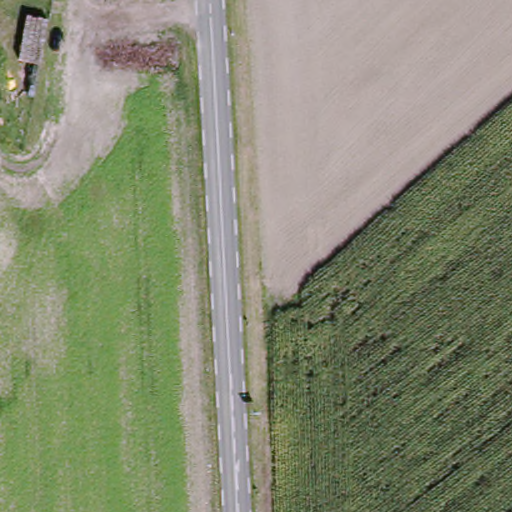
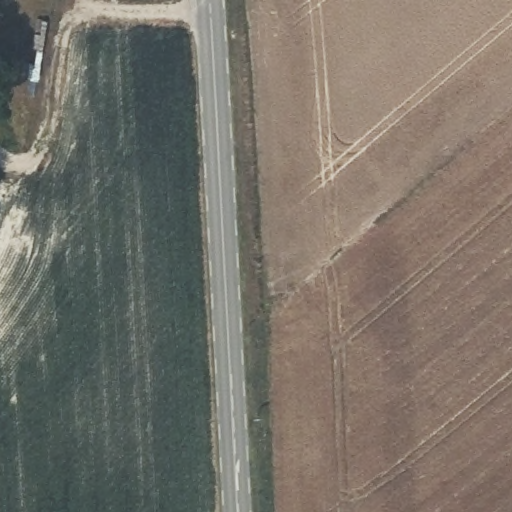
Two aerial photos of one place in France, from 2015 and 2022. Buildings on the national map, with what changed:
[]

